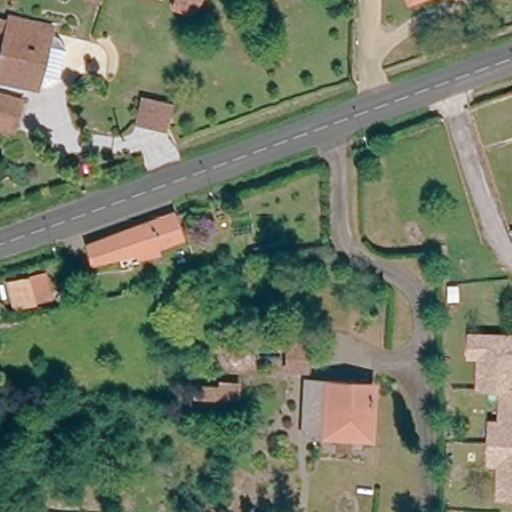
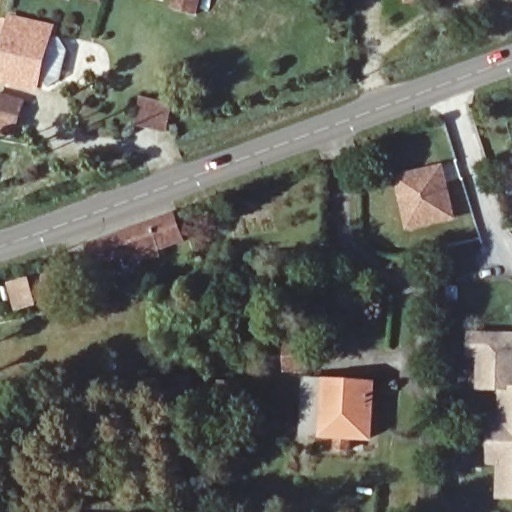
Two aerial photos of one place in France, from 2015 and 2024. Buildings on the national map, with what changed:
unchanged [(96,5),(83,0),(107,0),(106,7),(96,5)]
unchanged [(176,24),(182,0),(207,0),(200,30),(176,24)]
unchanged [(408,0),(411,0),(408,1),(408,0)]
unchanged [(61,81),(51,87),(37,86),(36,89),(0,79),(0,50),(9,17),(34,24),(54,28),(52,37),(61,38),(63,44),(68,52),(61,81)]
unchanged [(17,132),(0,127),(0,95),(25,101),(17,132)]
unchanged [(165,135),(133,127),(139,100),(171,107),(165,135)]
new [(445,164),(457,221),(406,232),(395,176),(445,164)]
unchanged [(95,265),(89,249),(176,217),(182,233),(95,265)]
unchanged [(19,310),(13,289),(12,282),(32,277),(35,287),(39,304),(19,310)]
unchanged [(499,462),(489,462),(490,442),(491,422),(501,422),(502,389),(480,388),(481,356),(471,356),(472,335),(482,336),(512,337),(512,497),(498,496),(499,462)]
unchanged [(325,347),(324,373),(289,372),(289,346),(325,347)]
unchanged [(336,452),(336,437),(303,436),(305,385),(370,387),(368,438),(348,437),(348,452),(336,452)]

